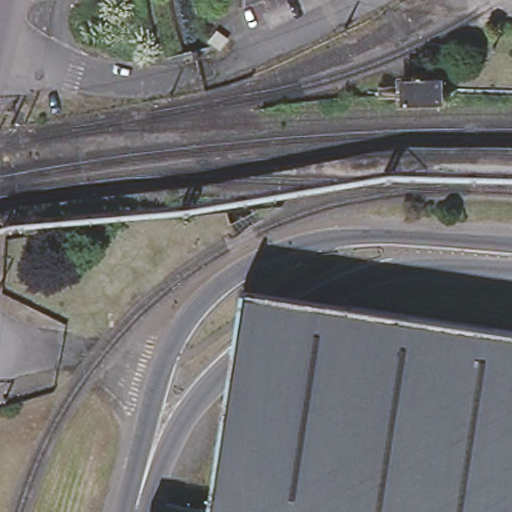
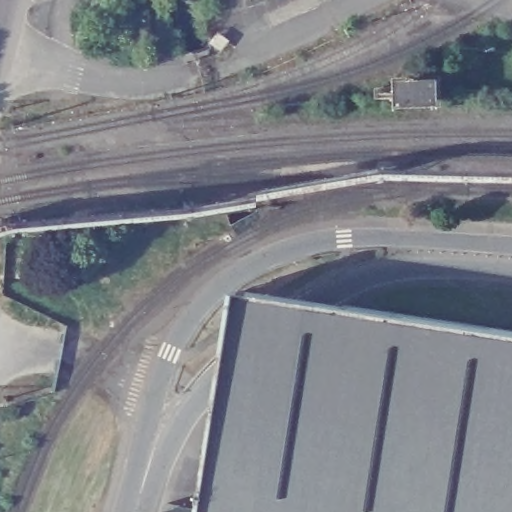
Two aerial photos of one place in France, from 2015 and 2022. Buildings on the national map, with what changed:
unchanged [(449,109),(396,112),(394,79),(446,76),(449,109)]
unchanged [(185,247),(142,253),(139,231),(182,225),(185,247)]
unchanged [(339,312),(512,338),(512,512),(203,512),(219,400),(339,312)]
unchanged [(198,512),(170,512),(170,508),(198,512)]

